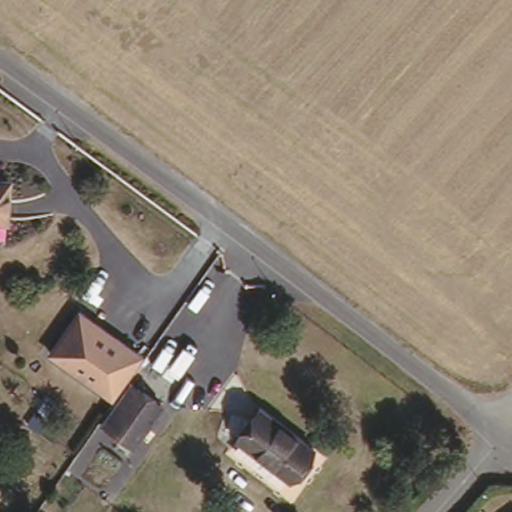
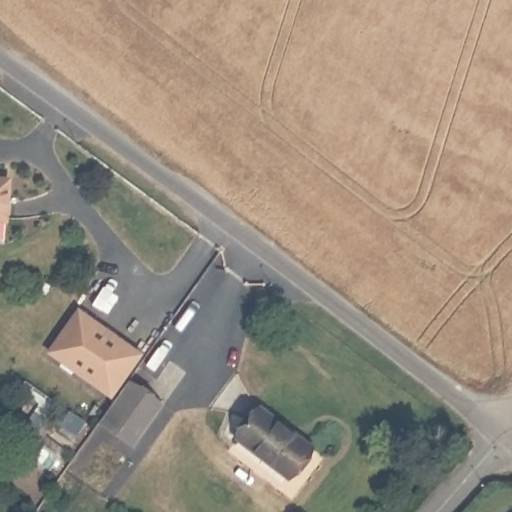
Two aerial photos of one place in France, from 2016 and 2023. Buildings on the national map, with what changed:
unchanged [(3,211),(0,211),(0,171),(7,171),(3,211)]
unchanged [(138,349),(109,391),(47,348),(76,306),(138,349)]
unchanged [(127,376),(161,400),(131,440),(99,418),(127,376)]
unchanged [(292,476),(239,437),(263,405),(316,443),(292,476)]

